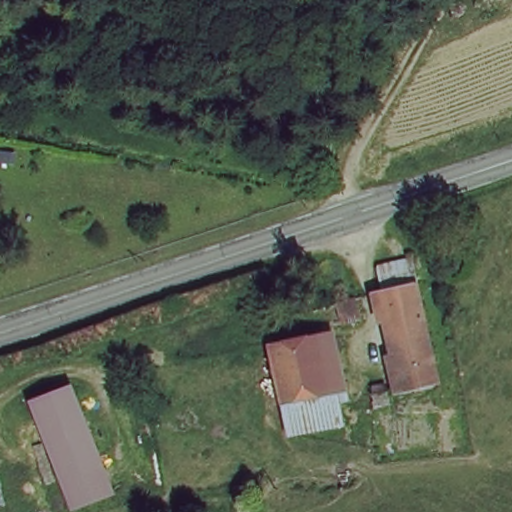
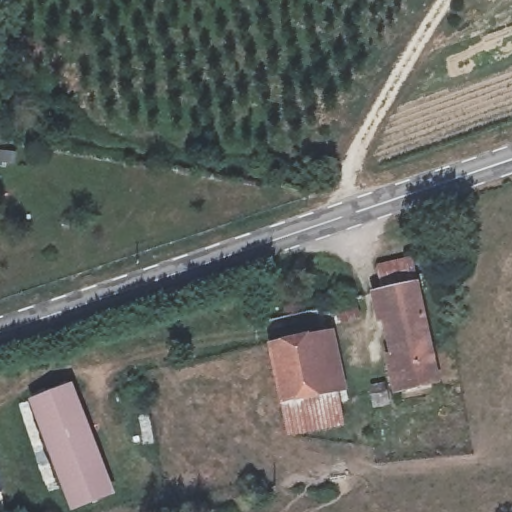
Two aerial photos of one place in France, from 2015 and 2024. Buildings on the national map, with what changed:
unchanged [(405,393),(383,298),(387,297),(382,273),(413,267),(442,384),(405,393)]
unchanged [(344,312),(340,294),(356,290),(361,307),(344,312)]
unchanged [(269,334),(314,325),(326,381),(282,391),(269,334)]
unchanged [(326,381),(333,410),(288,420),(282,391),(326,381)]
unchanged [(75,395),(110,500),(71,512),(67,512),(33,408),(75,395)]

